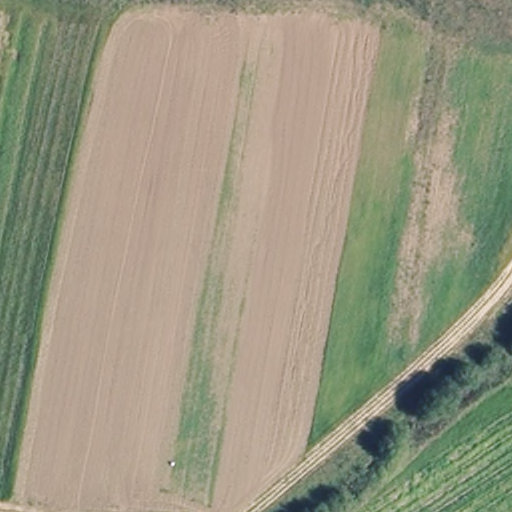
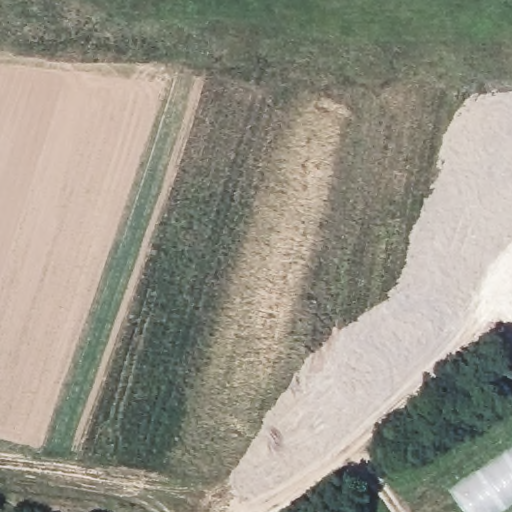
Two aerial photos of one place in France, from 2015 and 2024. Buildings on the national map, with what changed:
new [(512,446),(512,505),(502,512),(464,512),(448,489),(512,446)]

